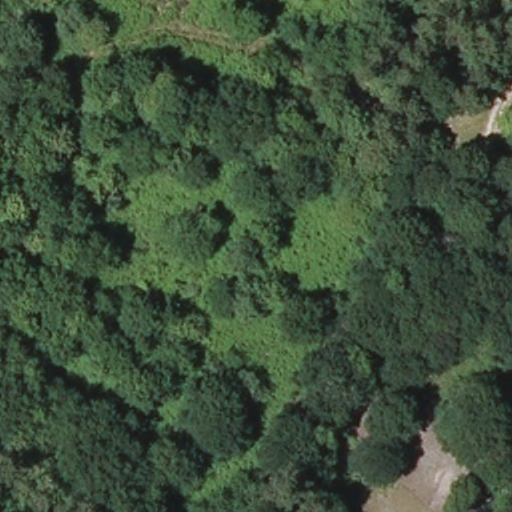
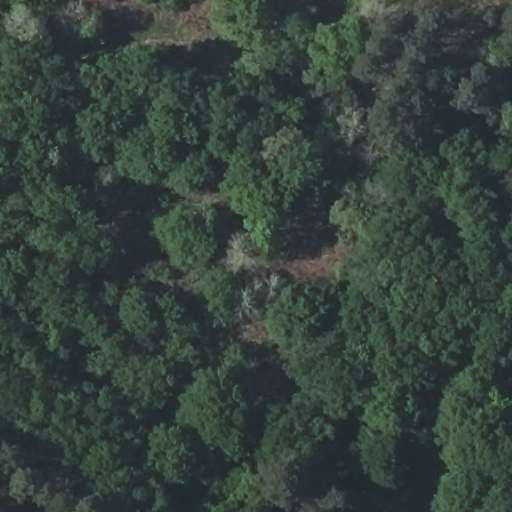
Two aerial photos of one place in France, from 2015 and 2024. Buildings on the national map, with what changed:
unchanged [(508,451),(512,446),(512,455),(508,451)]

